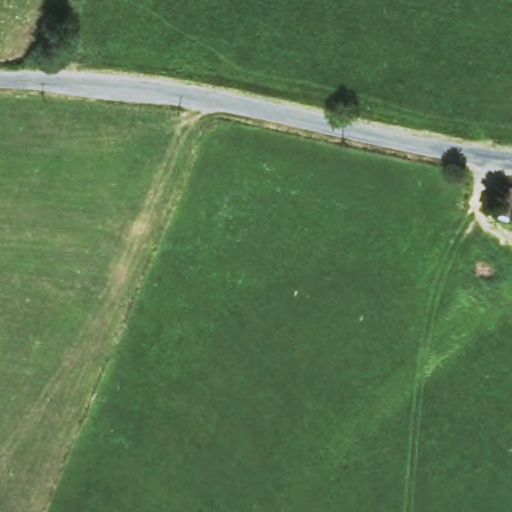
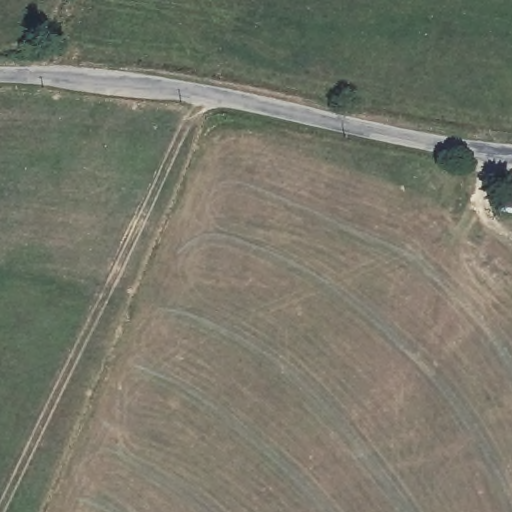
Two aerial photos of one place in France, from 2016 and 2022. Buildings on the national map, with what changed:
unchanged [(512,180),(512,208),(511,214),(499,212),(504,179),(512,180)]

